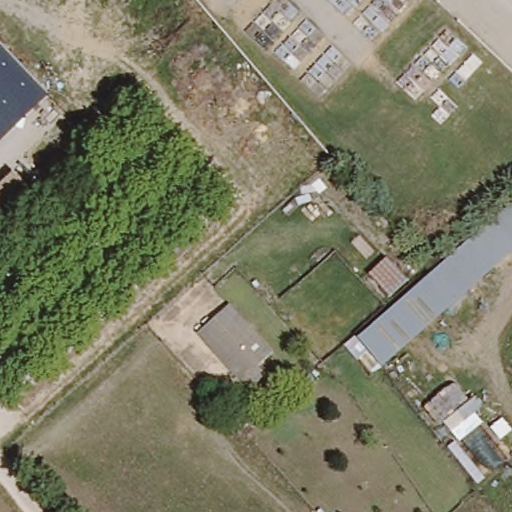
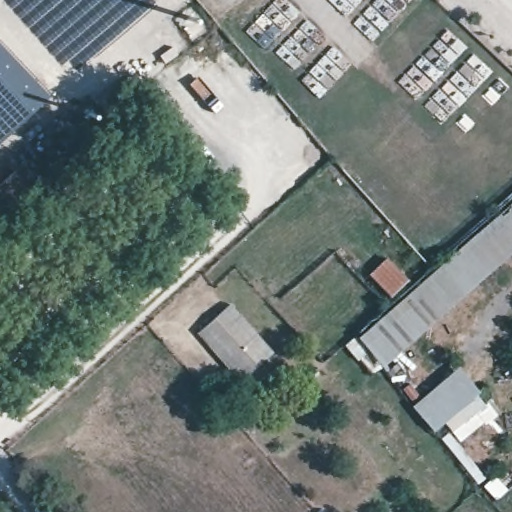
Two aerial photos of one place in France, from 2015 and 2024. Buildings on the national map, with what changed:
new [(156,2),(114,42),(80,65),(77,59),(62,70),(1,0),(154,0),(156,2)]
demolished [(201,51),(185,66),(170,54),(187,37),(201,51)]
unchanged [(48,96),(0,142),(0,44),(48,96)]
demolished [(309,153),(320,167),(298,181),(287,168),(309,153)]
unchanged [(14,175),(31,194),(0,221),(0,187),(14,175)]
unchanged [(372,375),(345,345),(357,336),(512,202),(512,251),(382,365),(372,375)]
unchanged [(250,390),(241,380),(197,331),(228,302),(272,351),(258,365),(266,375),(250,390)]
new [(479,392),(476,395),(485,406),(452,433),(444,424),(433,434),(411,407),(458,367),(479,392)]

